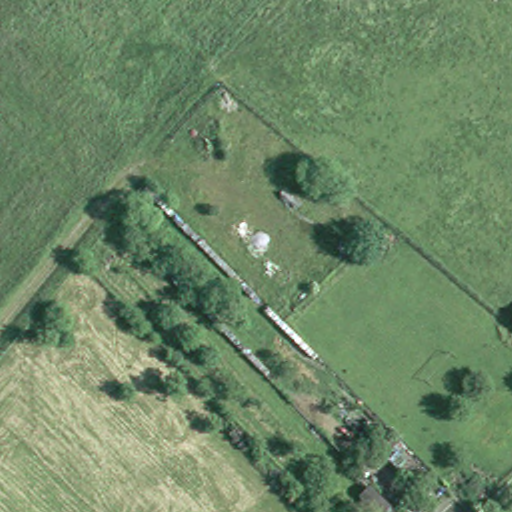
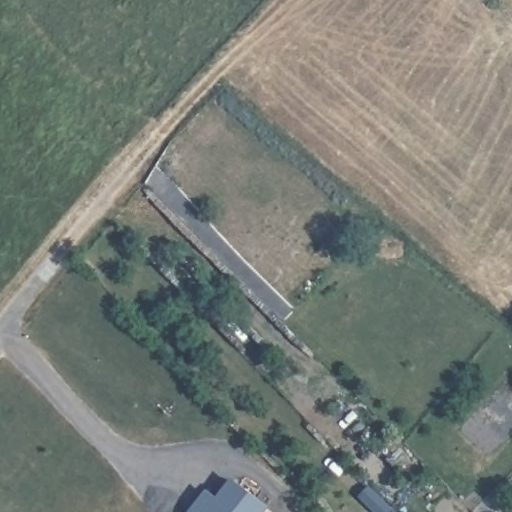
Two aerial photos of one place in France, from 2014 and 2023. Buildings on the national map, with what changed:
new [(217,498),(231,478),(268,505),(263,512),(188,512),(206,489),(217,498)]

